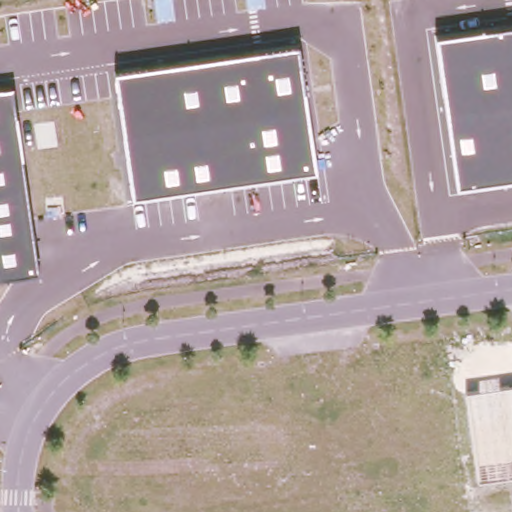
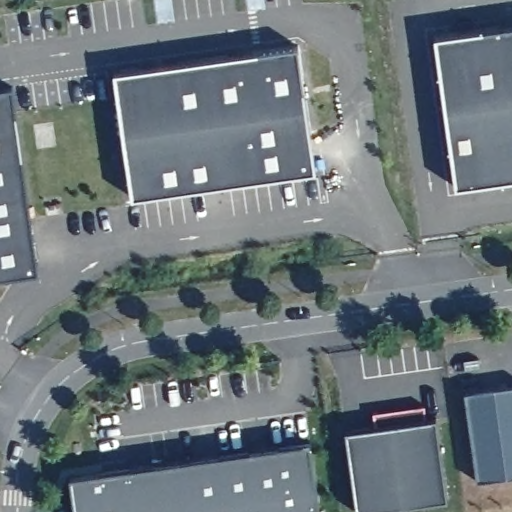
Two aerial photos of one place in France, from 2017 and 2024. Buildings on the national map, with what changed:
unchanged [(512,24),(512,177),(455,185),(433,34),(512,24)]
unchanged [(114,71),(298,44),(316,169),(132,195),(114,71)]
unchanged [(13,85),(40,272),(0,278),(0,87),(13,85)]
unchanged [(512,390),(512,480),(476,485),(464,396),(512,390)]
new [(430,423),(438,422),(450,504),(396,512),(358,512),(347,435),(377,431),(375,416),(427,409),(430,423)]
new [(317,439),(327,512),(81,512),(76,473),(317,439)]

